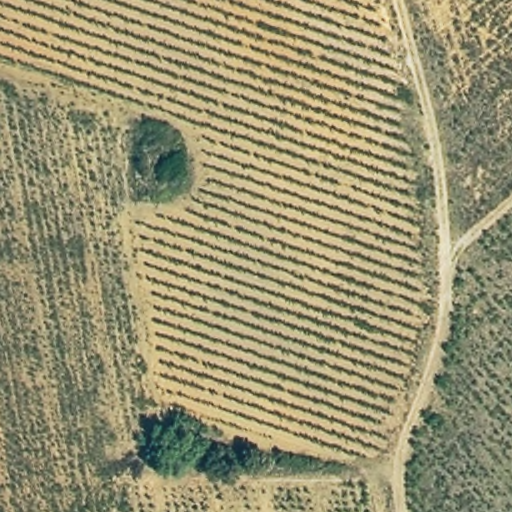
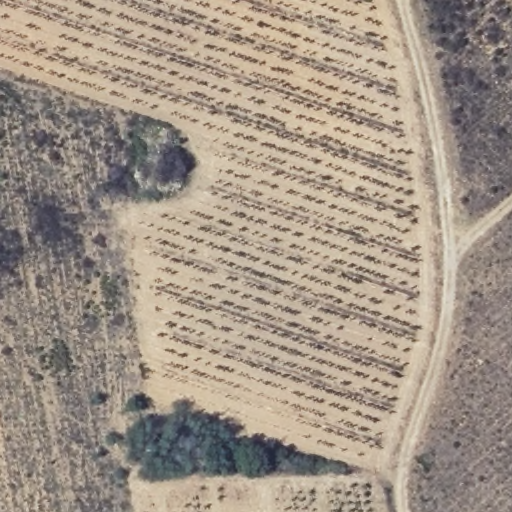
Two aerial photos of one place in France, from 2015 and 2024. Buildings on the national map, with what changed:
unchanged [(164,437),(170,443),(165,447),(159,456),(146,450),(156,431),(164,437)]

